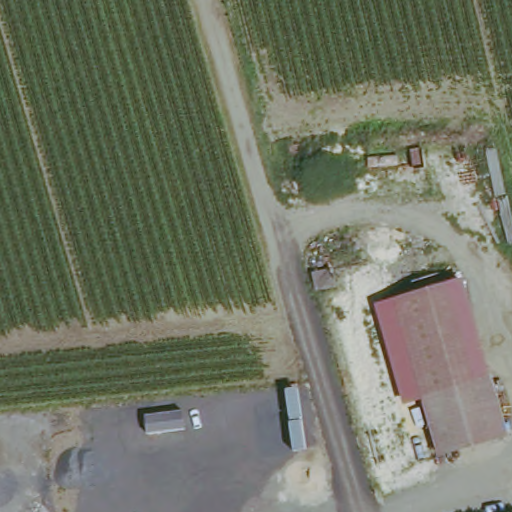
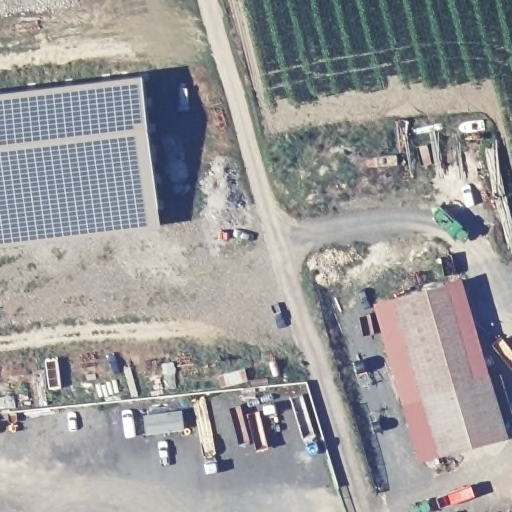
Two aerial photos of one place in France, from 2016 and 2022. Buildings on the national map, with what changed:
new [(0,239),(0,92),(141,77),(163,225),(0,239)]
unchanged [(402,301),(457,285),(485,380),(430,397),(402,301)]
unchanged [(497,377),(512,428),(512,436),(447,455),(430,397),(485,380),(497,377)]

